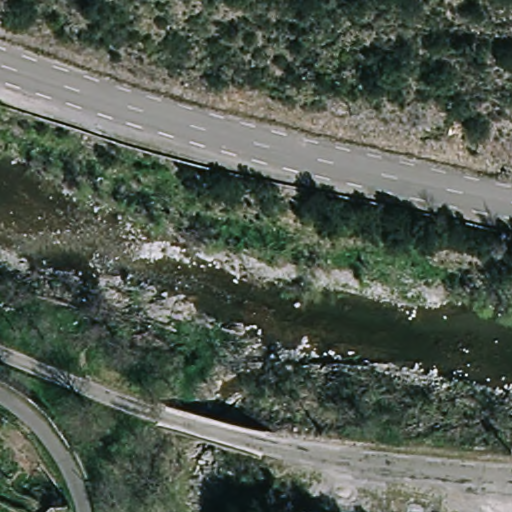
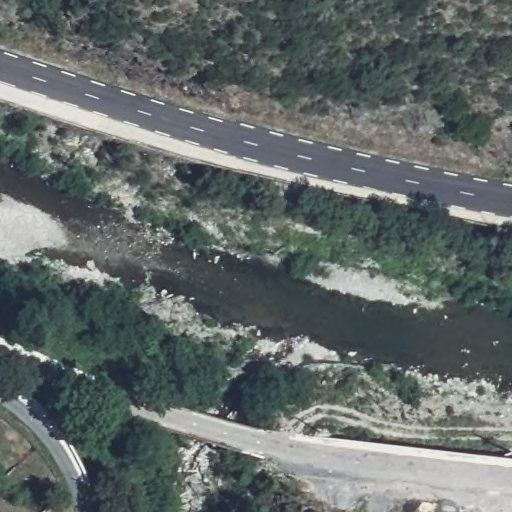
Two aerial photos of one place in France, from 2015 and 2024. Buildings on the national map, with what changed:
[]

